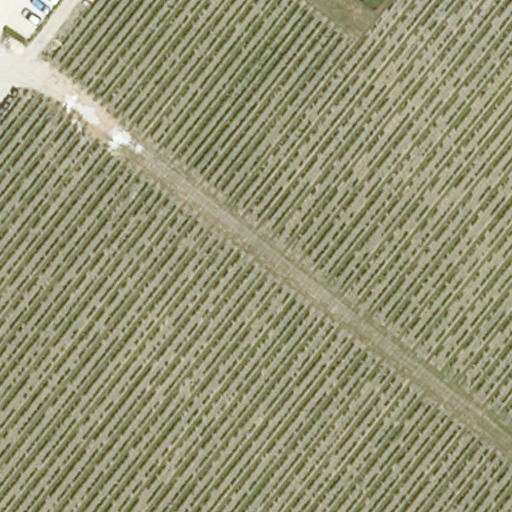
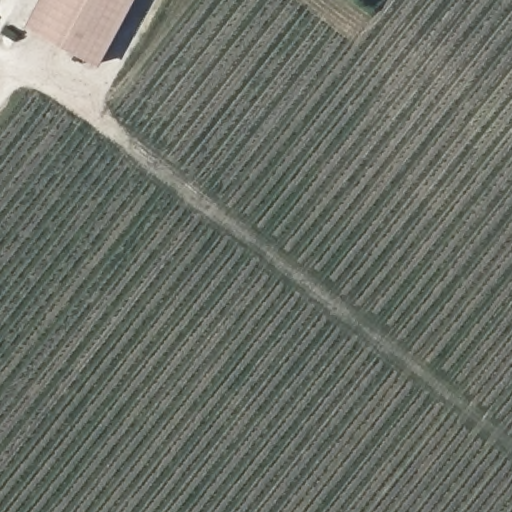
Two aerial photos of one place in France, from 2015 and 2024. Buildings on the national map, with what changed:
new [(135,0),(100,66),(26,26),(40,0),(135,0)]

